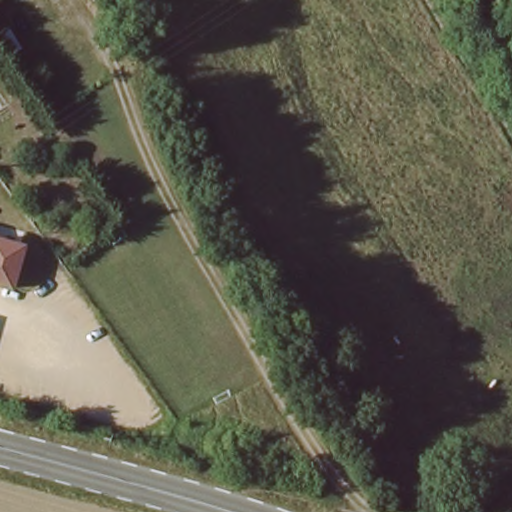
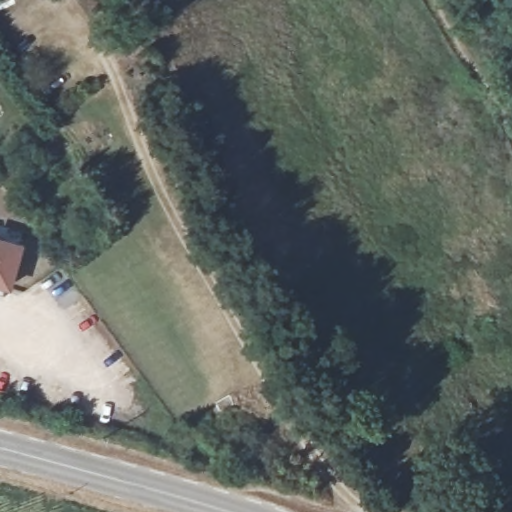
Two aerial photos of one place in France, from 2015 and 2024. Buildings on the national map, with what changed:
unchanged [(0,288),(0,239),(22,245),(10,290),(0,288)]

